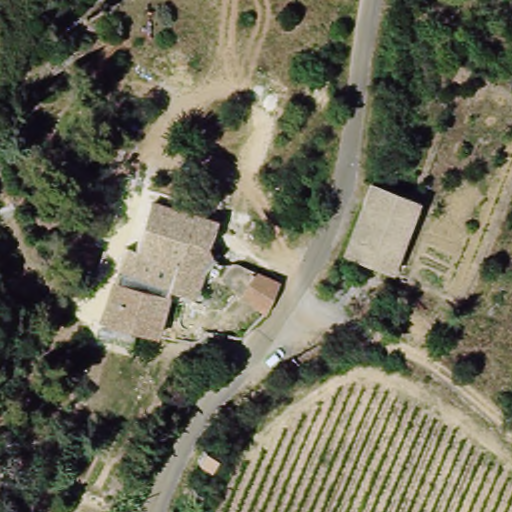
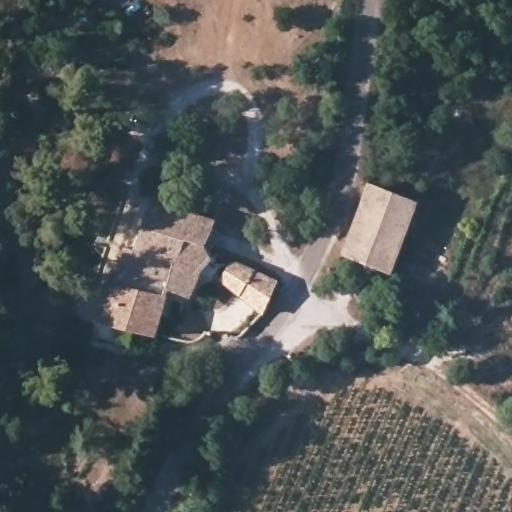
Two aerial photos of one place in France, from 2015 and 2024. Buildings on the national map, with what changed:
unchanged [(394,274),(348,258),(376,185),(422,203),(394,274)]
unchanged [(113,330),(102,327),(115,289),(128,253),(137,255),(153,208),(175,213),(200,220),(220,228),(209,253),(215,265),(204,277),(193,303),(171,295),(157,342),(132,335),(130,346),(110,341),(113,330)]
unchanged [(267,319),(240,299),(224,284),(235,268),(282,288),(267,319)]

